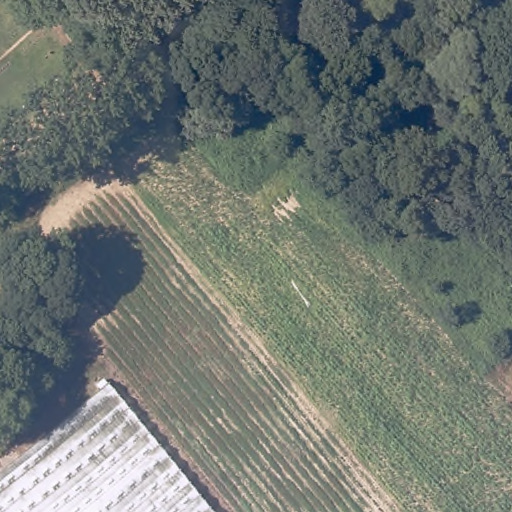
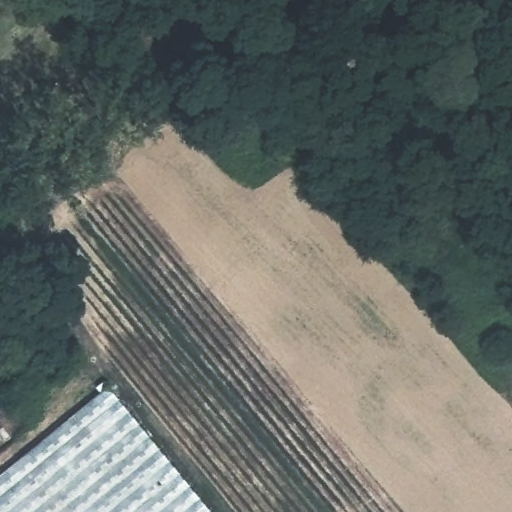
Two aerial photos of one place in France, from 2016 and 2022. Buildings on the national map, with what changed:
unchanged [(107,392),(173,475),(124,512),(36,512),(4,476),(107,392)]
unchanged [(203,512),(124,512),(173,475),(203,512)]
unchanged [(36,512),(0,512),(0,478),(4,476),(36,512)]

